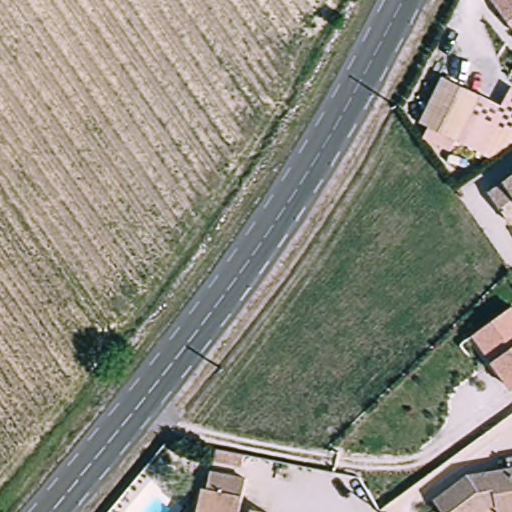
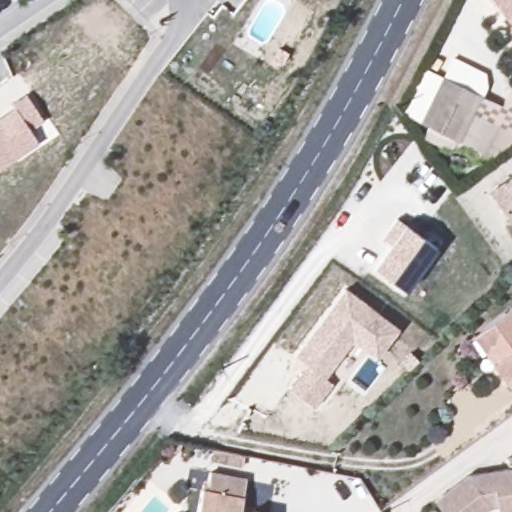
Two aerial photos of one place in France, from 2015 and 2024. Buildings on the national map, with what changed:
unchanged [(491,0),(512,0),(512,28),(511,27),(491,0)]
unchanged [(457,138),(422,121),(444,75),(479,91),(457,138)]
new [(11,106),(26,96),(42,121),(28,130),(38,142),(0,167),(0,120),(14,111),(11,106)]
unchanged [(499,125),(484,153),(462,142),(476,114),(499,125)]
unchanged [(510,223),(489,194),(512,178),(512,226),(510,223)]
new [(402,223),(436,249),(404,290),(371,266),(388,243),(381,238),(394,218),(402,223)]
new [(376,358),(352,340),(324,376),(331,382),(314,406),(288,386),(306,363),(294,354),(344,287),(399,327),(376,358)]
unchanged [(512,308),(512,389),(511,391),(491,363),(472,336),(479,331),(511,307),(512,308)]
unchanged [(497,511),(496,501),(489,502),(476,512),(466,512),(464,508),(458,512),(445,512),(433,496),(467,470),(508,463),(506,453),(512,452),(512,508),(497,511)]
unchanged [(201,480),(206,481),(209,462),(246,469),(237,512),(195,512),(201,480)]
unchanged [(250,501),(269,504),(267,512),(248,512),(250,501)]

